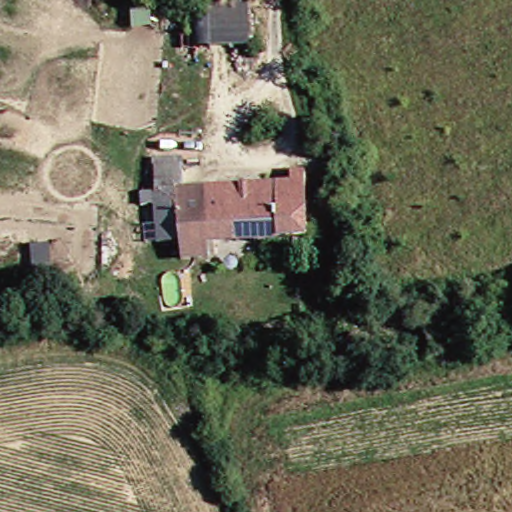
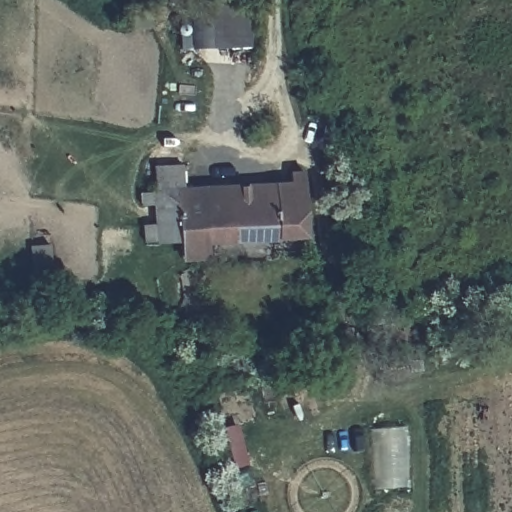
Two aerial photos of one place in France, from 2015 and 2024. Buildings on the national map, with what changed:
unchanged [(215,46),(217,0),(255,0),(254,45),(215,46)]
unchanged [(296,185),(296,178),(311,178),(313,236),(239,241),(239,213),(219,213),(215,189),(296,185)]
unchanged [(185,244),(163,245),(159,192),(215,189),(219,213),(239,213),(239,241),(185,244)]
new [(374,490),(373,429),(409,427),(411,488),(374,490)]

